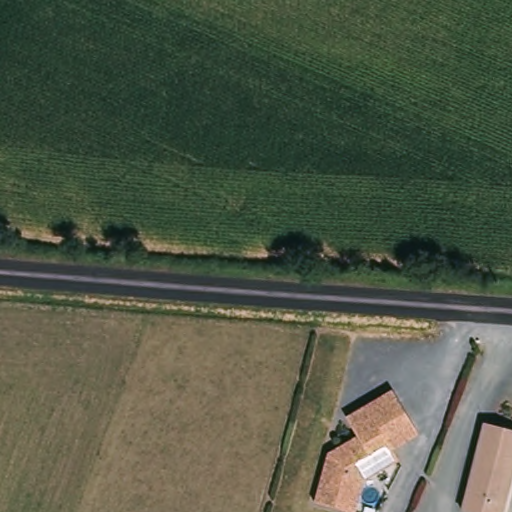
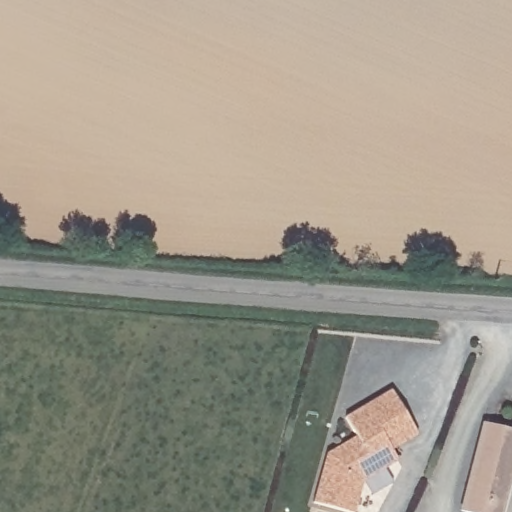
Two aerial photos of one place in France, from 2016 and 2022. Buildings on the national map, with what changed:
unchanged [(355,512),(346,512),(314,503),(327,454),(358,438),(348,418),(394,391),(411,424),(419,440),(392,454),(397,465),(363,481),(355,512)]
unchanged [(512,432),(512,485),(505,512),(482,512),(463,506),(486,425),(512,432)]

